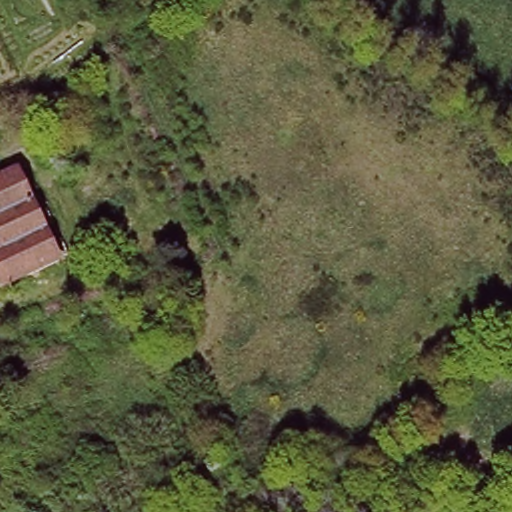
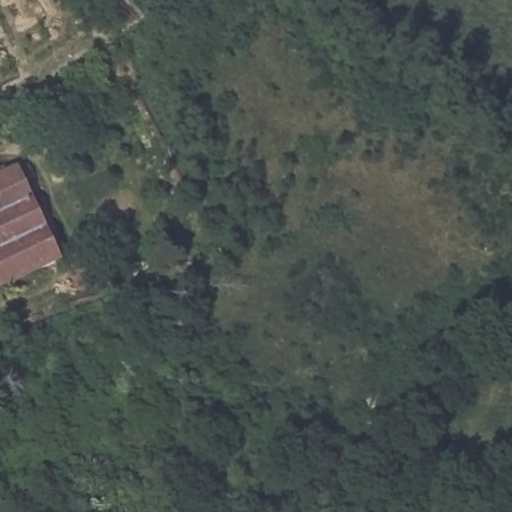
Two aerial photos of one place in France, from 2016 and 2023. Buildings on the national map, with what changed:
unchanged [(62,246),(3,273),(0,266),(0,165),(4,173),(24,164),(62,246)]

